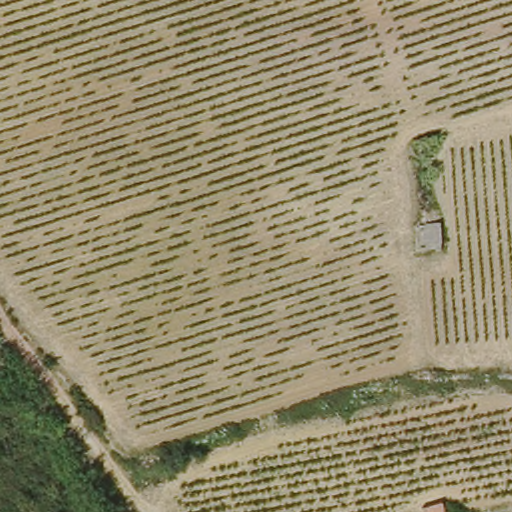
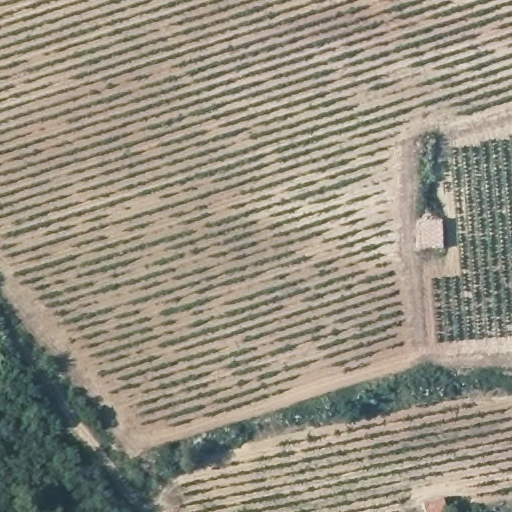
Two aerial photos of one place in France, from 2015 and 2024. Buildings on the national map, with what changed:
unchanged [(441,245),(418,245),(418,218),(441,218),(441,245)]
unchanged [(421,503),(445,495),(450,512),(424,512),(421,503)]

